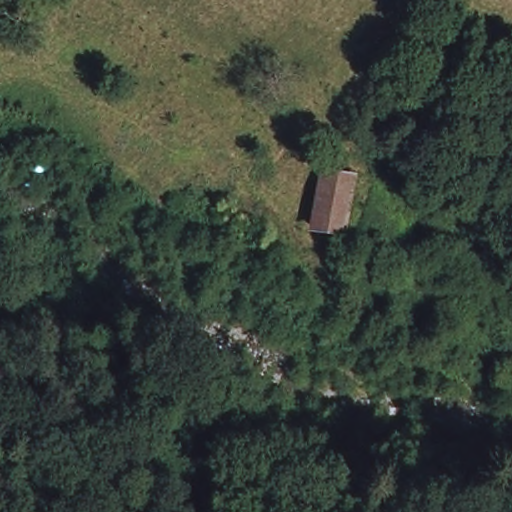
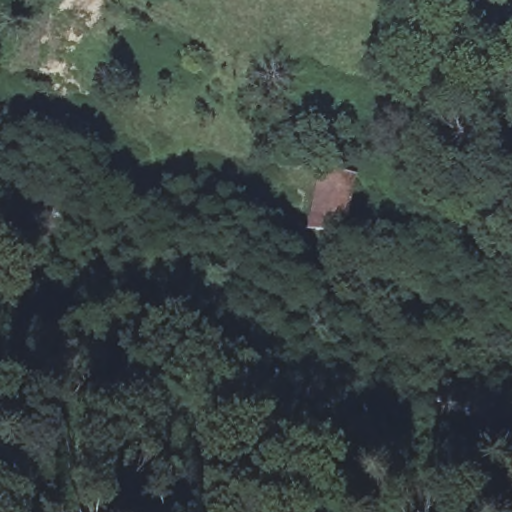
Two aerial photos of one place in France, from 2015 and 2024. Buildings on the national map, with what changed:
unchanged [(311,228),(312,226),(323,177),(350,183),(337,234),(311,228)]

